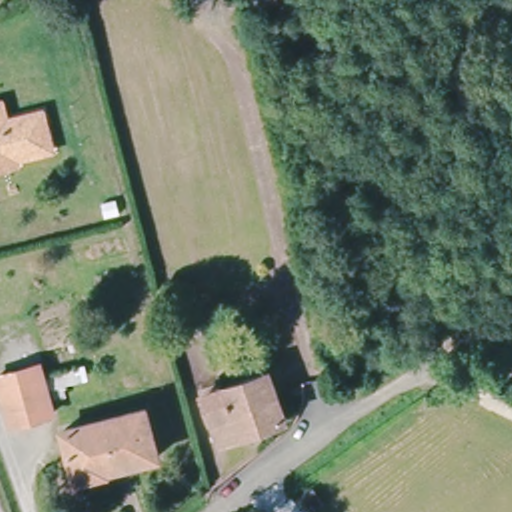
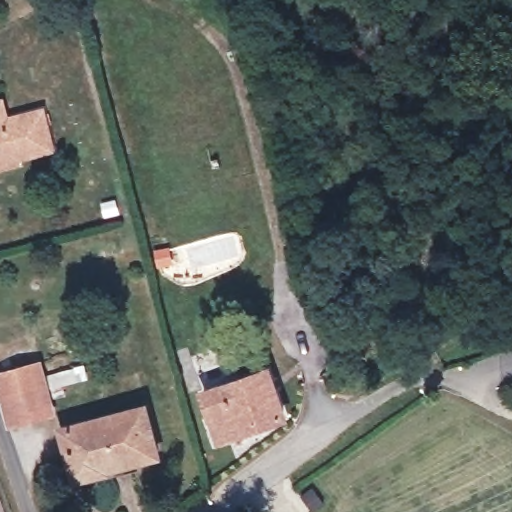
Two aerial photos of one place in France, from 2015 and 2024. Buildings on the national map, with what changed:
unchanged [(7,93),(11,113),(47,105),(58,150),(0,164),(0,95),(7,93)]
unchanged [(60,416),(19,427),(16,418),(3,382),(48,370),(58,406),(60,416)]
unchanged [(219,441),(202,395),(265,371),(282,417),(219,441)]
unchanged [(76,482),(61,432),(142,410),(156,459),(76,482)]

